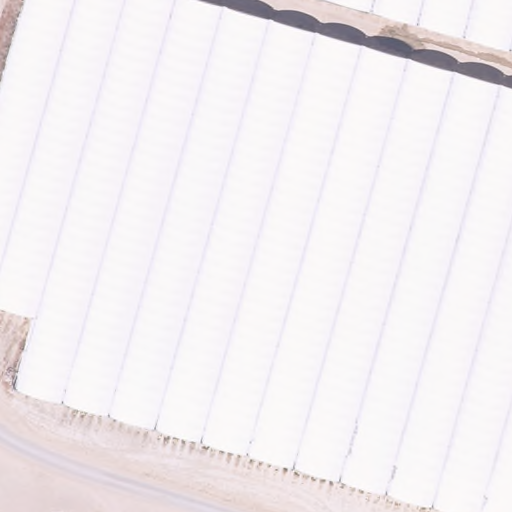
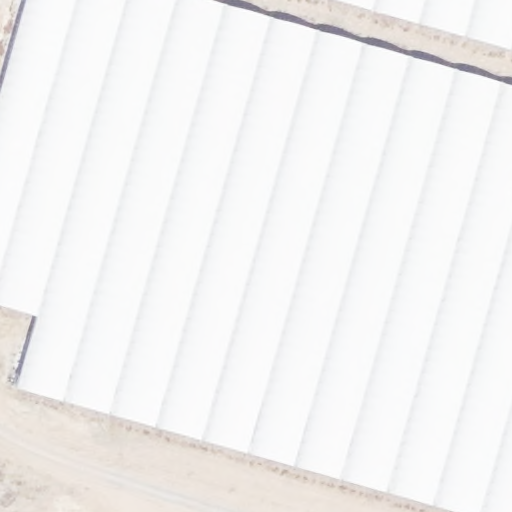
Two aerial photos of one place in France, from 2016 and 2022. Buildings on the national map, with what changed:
unchanged [(512,512),(467,512),(19,388),(39,315),(0,305),(0,91),(26,0),(217,0),(512,84),(512,512)]
unchanged [(512,49),(339,0),(512,0),(512,49)]

